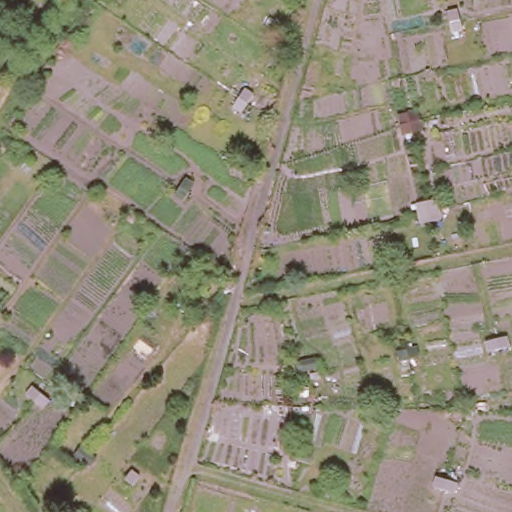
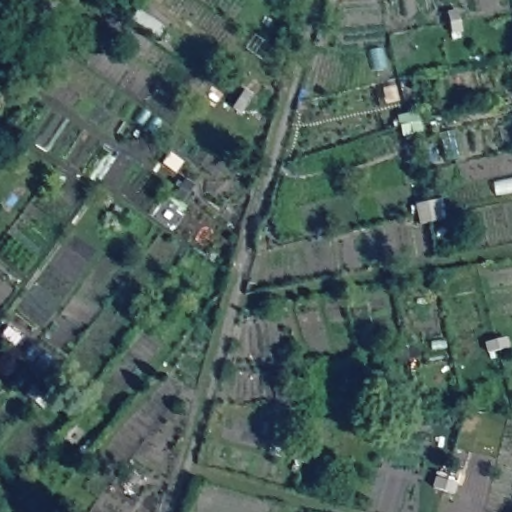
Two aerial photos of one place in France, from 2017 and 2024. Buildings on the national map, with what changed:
unchanged [(151,40),(159,45),(153,52),(146,47),(151,40)]
unchanged [(127,122),(121,129),(115,125),(119,117),(127,122)]
unchanged [(96,193),(86,208),(79,202),(89,189),(96,193)]
unchanged [(155,234),(149,240),(144,236),(148,230),(155,234)]
unchanged [(196,261),(190,269),(183,263),(188,255),(196,261)]

